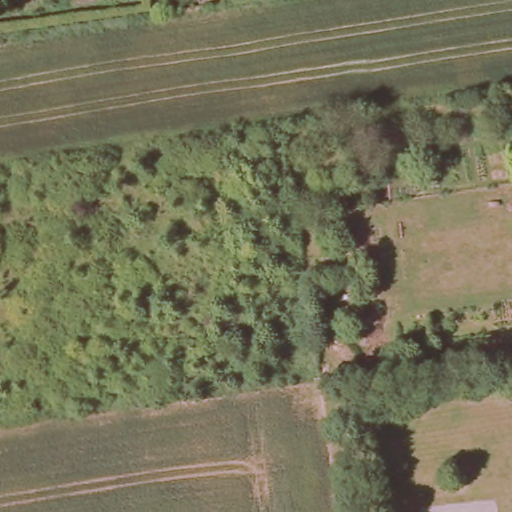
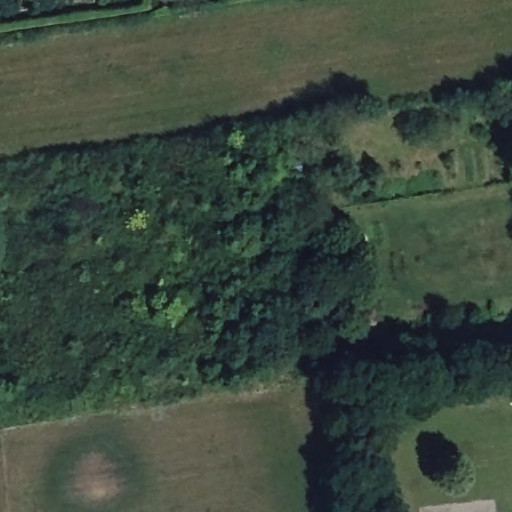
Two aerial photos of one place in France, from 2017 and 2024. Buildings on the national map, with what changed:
unchanged [(497,92),(512,90),(512,110),(501,111),(497,92)]

